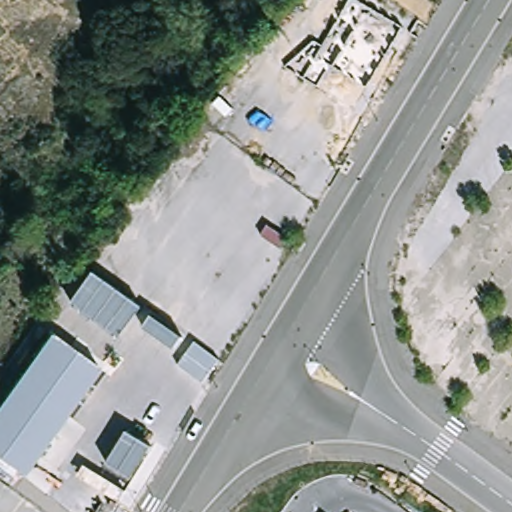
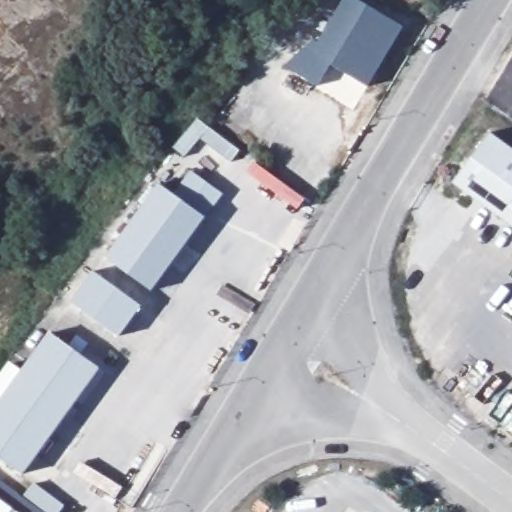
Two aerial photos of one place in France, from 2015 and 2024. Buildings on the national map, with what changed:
new [(319,87),(287,64),(318,39),(345,0),(356,0),(402,27),(367,86),(332,65),(319,87)]
new [(512,149),(512,227),(453,183),(491,133),(512,149)]
new [(159,185),(205,217),(153,292),(107,258),(159,185)]
new [(191,341),(167,372),(118,338),(72,303),(95,271),(142,306),(191,341)]
unchanged [(0,461),(0,407),(52,337),(99,373),(24,477),(0,461)]
new [(0,512),(0,500),(17,512),(0,512)]

